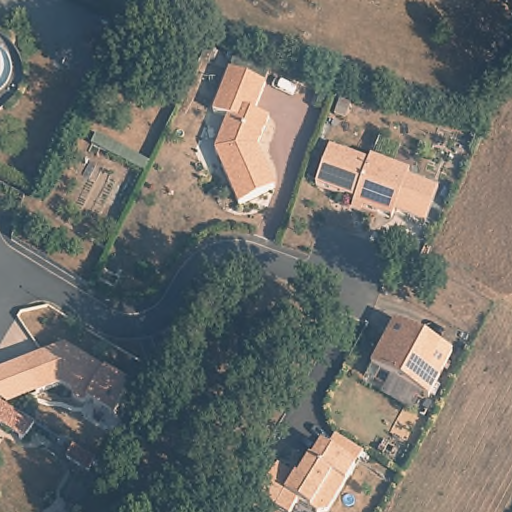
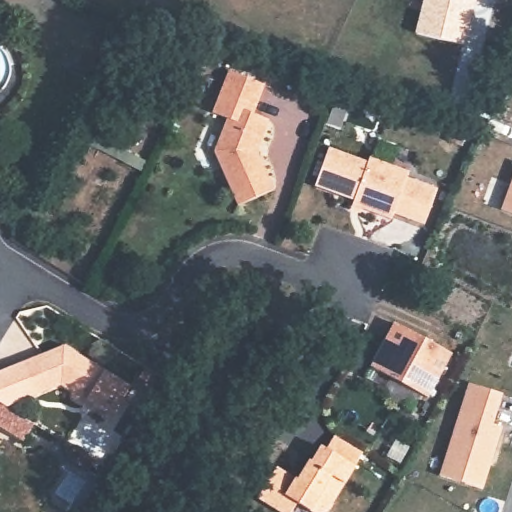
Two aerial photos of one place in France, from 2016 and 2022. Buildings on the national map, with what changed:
unchanged [(177,0),(180,2),(171,26),(169,25),(140,15),(146,0),(177,0)]
new [(414,34),(423,0),(471,0),(460,46),(414,34)]
unchanged [(254,115),(269,121),(258,147),(275,191),(239,205),(216,147),(227,120),(212,114),(230,72),(265,87),(254,115)]
unchanged [(355,204),(357,200),(318,185),(331,147),(370,162),(372,157),(411,171),(395,218),(355,204)]
new [(512,214),(503,210),(512,186),(512,214)]
unchanged [(373,366),(383,347),(389,342),(400,323),(454,352),(430,397),(373,366)]
unchanged [(66,345),(133,385),(115,415),(89,400),(86,402),(84,402),(82,402),(79,402),(76,400),(74,397),(74,394),(74,391),(62,383),(35,396),(25,362),(66,345)]
new [(472,385),(504,394),(495,425),(504,427),(484,490),(443,477),(472,385)]
unchanged [(35,423),(23,442),(0,429),(0,403),(35,423)]
unchanged [(280,467),(301,480),(313,461),(320,465),(329,449),(330,450),(337,437),(365,453),(358,467),(359,467),(331,512),(316,512),(301,503),(296,512),(284,512),(262,498),(280,467)]
new [(74,445),(109,467),(101,480),(65,457),(74,445)]

